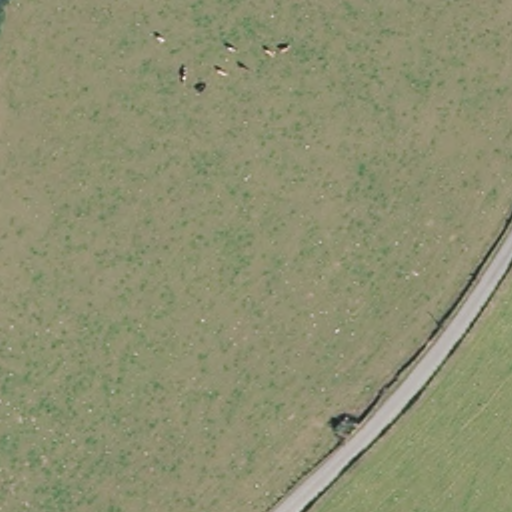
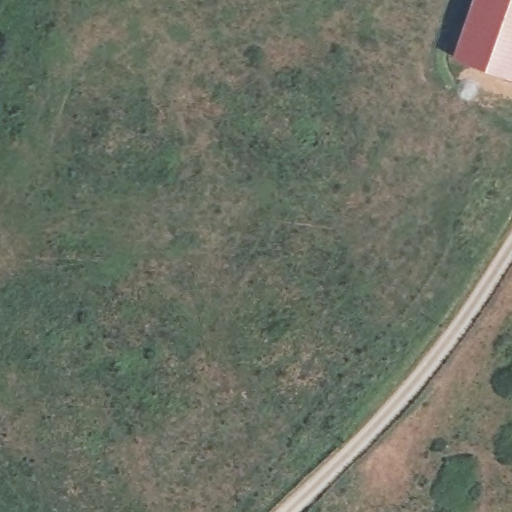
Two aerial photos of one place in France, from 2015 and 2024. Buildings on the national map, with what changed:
new [(472,0),(512,0),(512,77),(452,55),(472,0)]
demolished [(359,418),(347,430),(336,420),(344,411),(348,407),(359,418)]

